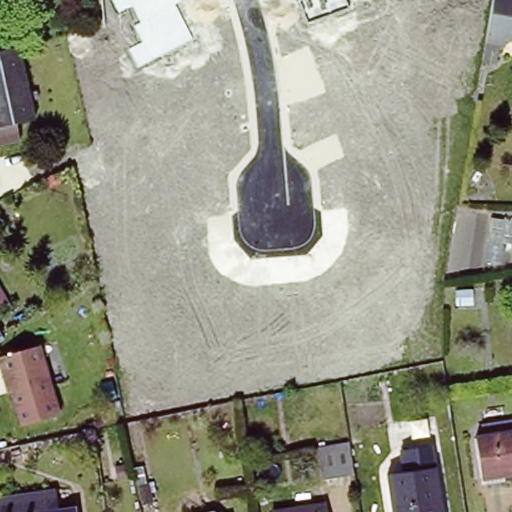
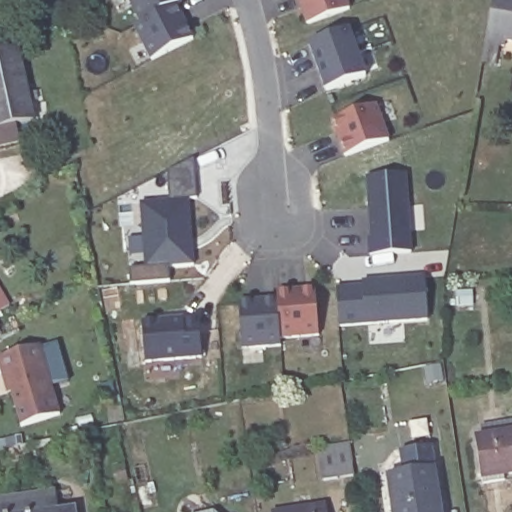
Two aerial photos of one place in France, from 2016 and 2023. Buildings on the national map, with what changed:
unchanged [(151,60),(134,25),(139,22),(129,0),(181,0),(182,2),(176,4),(193,39),(151,60)]
unchanged [(349,8),(306,24),(297,0),(347,0),(349,8)]
unchanged [(509,37),(508,43),(489,40),(496,0),(512,0),(512,37),(509,37)]
new [(347,27),(356,52),(316,67),(306,40),(347,27)]
unchanged [(34,117),(18,121),(23,145),(0,150),(0,50),(19,45),(34,117)]
new [(356,52),(365,76),(325,90),(316,67),(356,52)]
new [(375,104),(387,140),(344,155),(331,120),(375,104)]
new [(196,198),(188,198),(193,265),(168,267),(169,282),(129,284),(129,268),(146,268),(141,202),(169,200),(167,171),(194,157),(196,198)]
new [(369,256),(369,238),(371,237),(367,177),(408,174),(411,252),(369,256)]
new [(339,327),(337,287),(363,285),(363,281),(425,276),(428,321),(339,327)]
unchanged [(0,310),(0,289),(9,305),(0,310)]
new [(318,337),(279,339),(280,348),(243,349),(239,300),(276,297),(276,292),(316,290),(318,337)]
new [(201,360),(146,364),(142,321),(186,317),(186,320),(198,319),(201,360)]
unchanged [(0,342),(0,333),(4,340),(0,342)]
unchanged [(17,425),(3,376),(0,377),(0,375),(0,355),(38,345),(57,413),(17,425)]
unchanged [(486,480),(477,440),(512,432),(512,474),(486,480)]
unchanged [(351,441),(356,473),(322,478),(318,446),(351,441)]
unchanged [(395,512),(389,481),(414,477),(408,445),(429,441),(443,512),(395,512)]
unchanged [(318,512),(326,511),(326,512),(318,512)]

